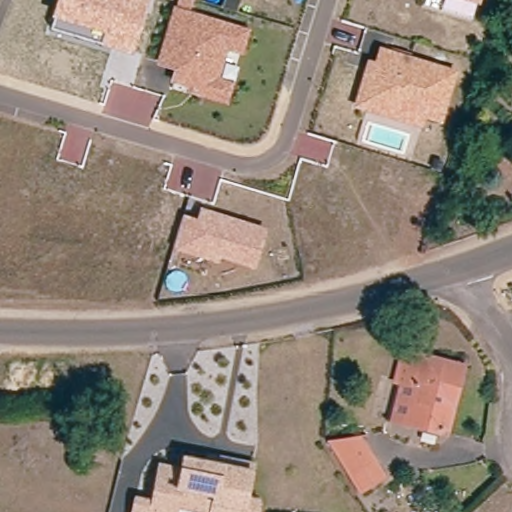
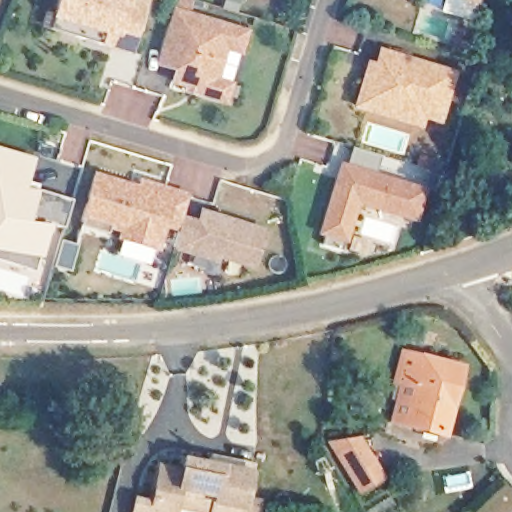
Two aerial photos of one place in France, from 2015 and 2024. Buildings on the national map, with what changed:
unchanged [(51,30),(53,17),(58,0),(148,0),(133,55),(51,30)]
unchanged [(481,5),(466,0),(482,0),(481,5)]
unchanged [(245,54),(227,50),(220,77),(235,81),(229,106),(188,95),(189,87),(170,82),(173,70),(156,67),(173,6),(250,28),(245,54)]
unchanged [(376,62),(380,47),(460,71),(444,124),(426,120),(422,127),(353,109),(368,60),(376,62)]
new [(320,233),(341,166),(345,167),(351,147),(380,156),(374,177),(422,191),(414,219),(356,201),(343,241),(340,252),(321,246),(324,235),(320,233)]
new [(28,267),(30,260),(27,259),(29,252),(0,248),(0,153),(31,162),(24,187),(35,190),(71,201),(62,229),(48,225),(40,254),(34,273),(23,270),(25,266),(28,267)]
new [(139,185),(140,178),(191,194),(184,215),(182,214),(177,230),(168,227),(159,252),(117,241),(119,232),(113,230),(112,234),(84,226),(86,221),(81,219),(96,171),(139,185)]
unchanged [(182,214),(197,219),(200,207),(266,228),(254,268),(221,258),(219,265),(172,249),(182,214)]
unchanged [(414,408),(418,392),(401,388),(409,359),(465,372),(448,440),(426,434),(409,430),(414,408)]
unchanged [(329,442),(357,437),(370,458),(376,468),(354,481),(348,472),(329,442)]
unchanged [(153,505),(160,467),(182,472),(185,460),(207,465),(209,457),(231,462),(247,466),(253,467),(250,480),(246,501),(254,502),(259,503),(257,512),(202,512),(176,507),(175,512),(134,512),(136,501),(153,505)]

